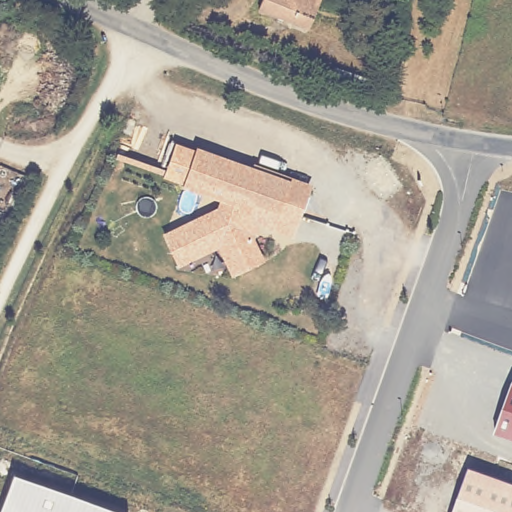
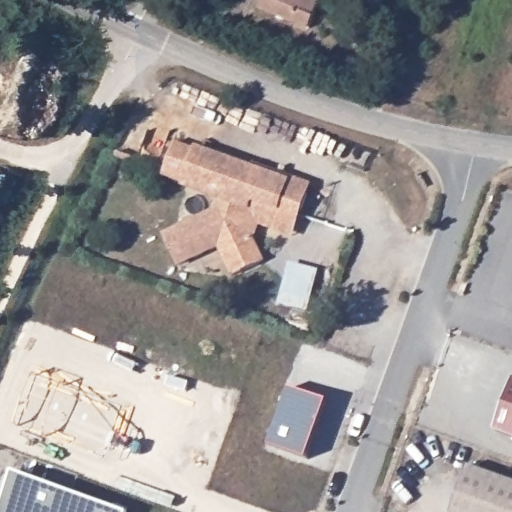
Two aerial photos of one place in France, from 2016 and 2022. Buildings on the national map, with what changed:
unchanged [(253,7),(256,0),(315,0),(305,27),(253,7)]
unchanged [(378,59),(371,85),(324,70),(332,46),(378,59)]
unchanged [(222,248),(182,267),(168,237),(222,211),(225,201),(187,187),(189,182),(168,174),(178,147),(199,155),(201,150),(312,192),(301,221),(295,238),(281,233),(257,224),(253,237),(266,262),(244,272),(236,276),(222,248)]
unchanged [(512,379),(512,440),(494,433),(512,379)]
new [(290,386),(328,401),(307,458),(269,444),(290,386)]
unchanged [(512,512),(452,512),(469,466),(512,481),(512,512)]
unchanged [(122,512),(0,512),(15,474),(122,512)]

